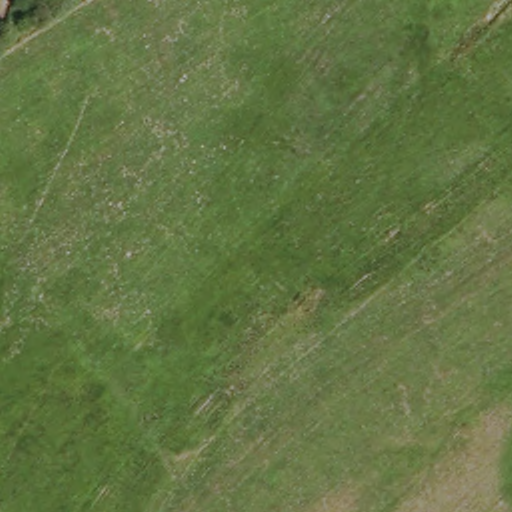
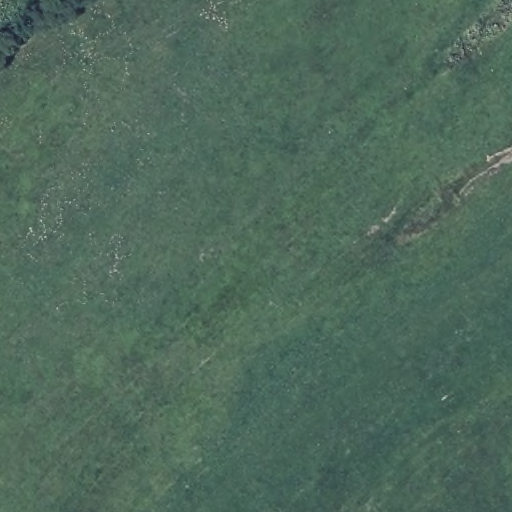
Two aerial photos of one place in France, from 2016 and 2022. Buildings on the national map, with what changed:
[]

